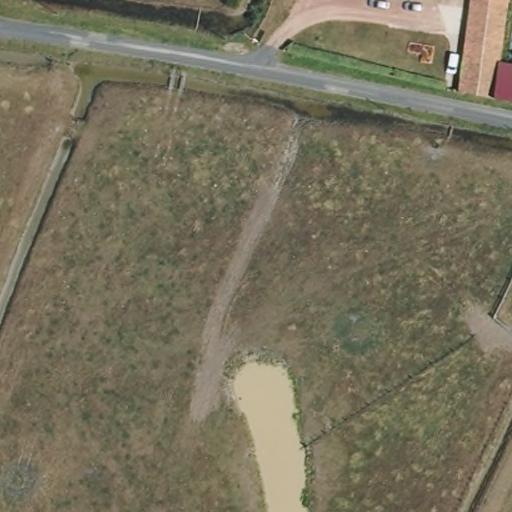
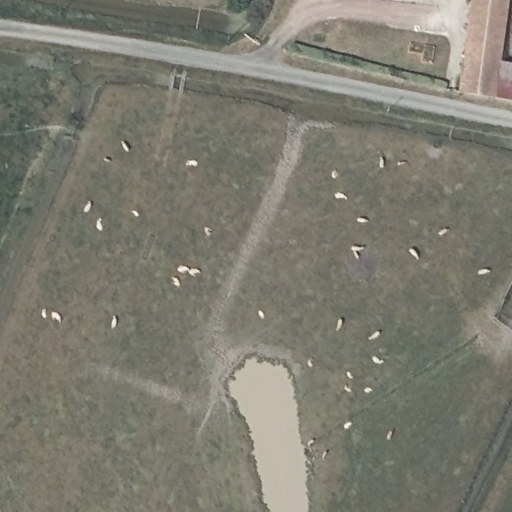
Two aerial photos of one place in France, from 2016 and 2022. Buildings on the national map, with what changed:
unchanged [(512,72),(512,103),(459,98),(471,0),(507,0),(500,71),(512,72)]

